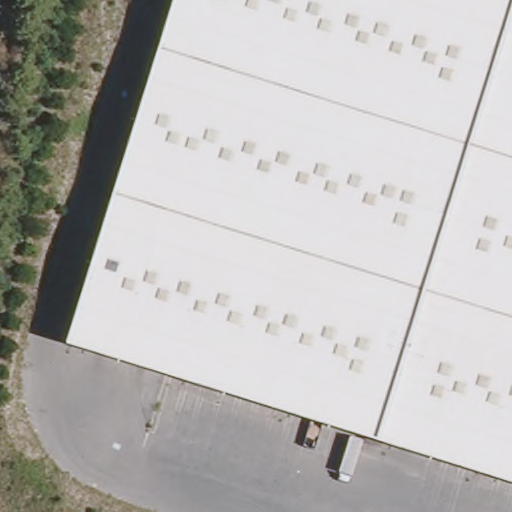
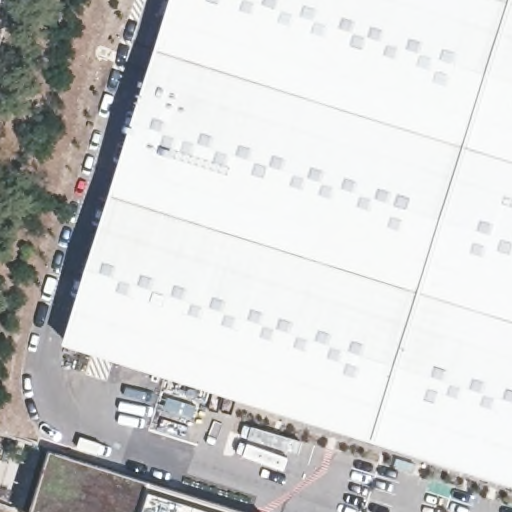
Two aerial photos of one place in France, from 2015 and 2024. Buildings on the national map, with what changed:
unchanged [(173,0),(512,0),(512,492),(64,354),(173,0)]
new [(30,512),(52,451),(251,512),(30,512)]

